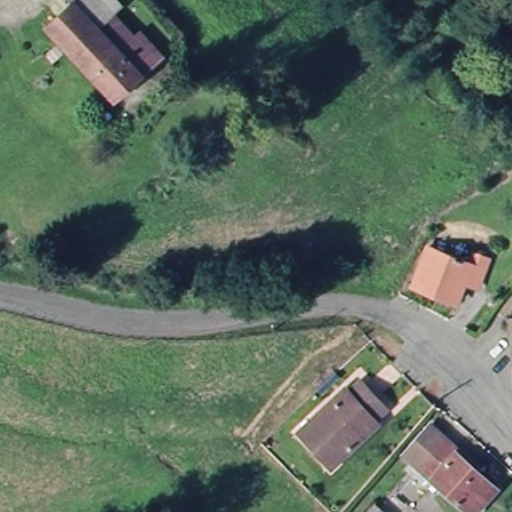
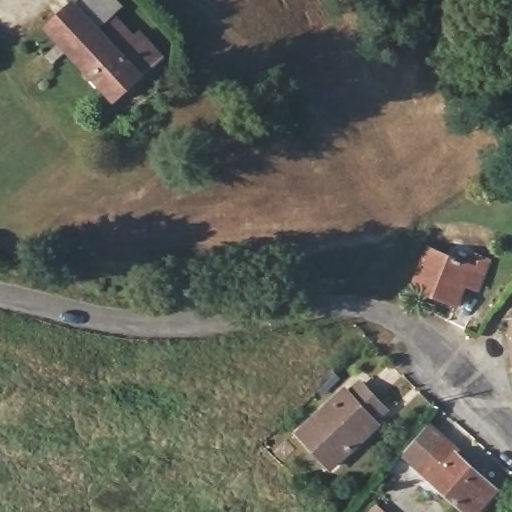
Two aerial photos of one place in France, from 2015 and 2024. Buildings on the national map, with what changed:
unchanged [(137,19),(158,41),(115,87),(60,33),(83,11),(73,0),(118,0),(98,20),(116,39),(137,19)]
unchanged [(465,288),(456,308),(415,291),(429,254),(472,271),(483,243),(506,253),(495,279),(485,276),(478,293),(465,288)]
unchanged [(506,354),(505,333),(512,333),(512,380),(509,381),(506,354)]
unchanged [(330,473),(297,435),(344,391),(348,395),(359,385),(385,413),(374,423),(377,426),(330,473)]
unchanged [(496,492),(478,512),(465,512),(411,461),(403,453),(431,423),(438,430),(472,463),(469,466),(496,492)]
unchanged [(384,512),(366,512),(374,503),(384,512)]

